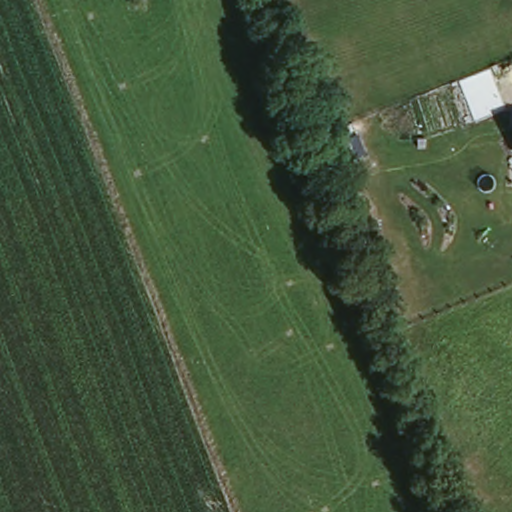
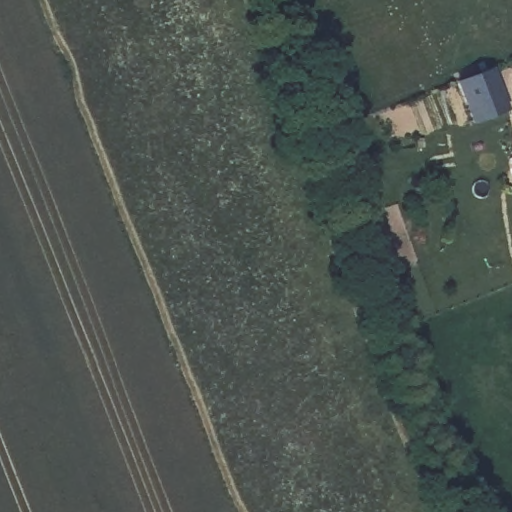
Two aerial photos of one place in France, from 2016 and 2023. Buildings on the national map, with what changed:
new [(509,109),(474,122),(458,82),(493,69),(509,109)]

